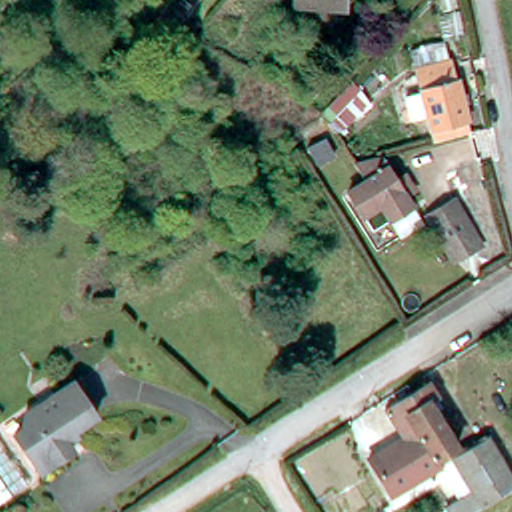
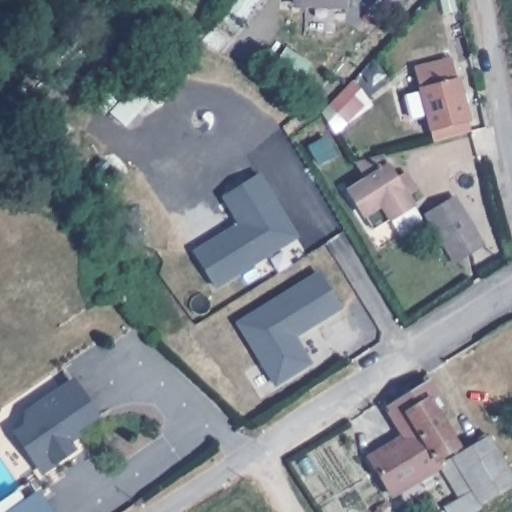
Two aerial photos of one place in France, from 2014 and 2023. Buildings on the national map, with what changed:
unchanged [(289,0),(338,0),(337,2),(289,0)]
unchanged [(429,136),(426,126),(425,126),(410,65),(446,55),(451,71),(452,74),(455,88),(463,86),(465,95),(457,96),(463,117),(462,120),(465,127),(429,136)]
unchanged [(343,92),(350,98),(327,124),(322,115),(325,111),(343,92)]
unchanged [(348,192),(365,181),(352,162),(381,155),(396,180),(405,175),(415,190),(406,195),(413,206),(390,220),(372,231),(348,192)]
new [(240,225),(223,198),(258,177),(276,206),(270,210),(275,217),(280,213),(296,239),(216,288),(195,254),(240,225)]
unchanged [(455,200),(481,239),(456,256),(429,217),(455,200)]
new [(319,275),(340,309),(288,341),(292,348),(298,345),(311,364),(277,385),(238,325),(319,275)]
unchanged [(23,450),(6,423),(16,417),(18,402),(33,393),(35,396),(68,375),(89,407),(56,428),(64,442),(45,452),(31,461),(23,450)]
unchanged [(428,378),(440,397),(435,400),(458,440),(441,451),(437,454),(406,404),(419,396),(415,388),(413,387),(428,378)]
unchanged [(413,387),(415,388),(419,396),(406,404),(437,454),(440,460),(424,470),(391,490),(368,452),(400,432),(383,405),(413,387)]
unchanged [(512,481),(481,499),(461,512),(450,512),(445,504),(471,486),(452,453),(488,431),(512,472),(512,481)]
new [(36,495),(48,512),(9,512),(36,495)]

